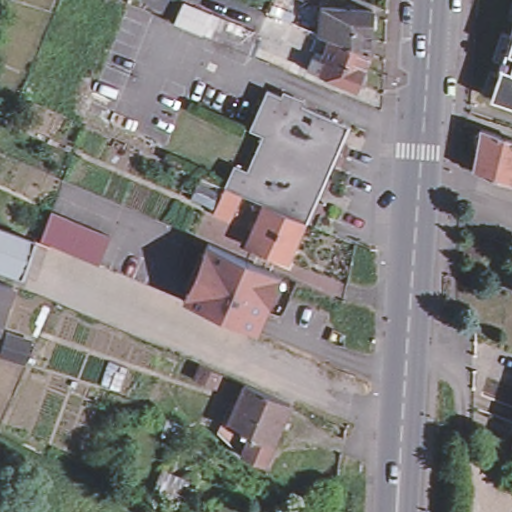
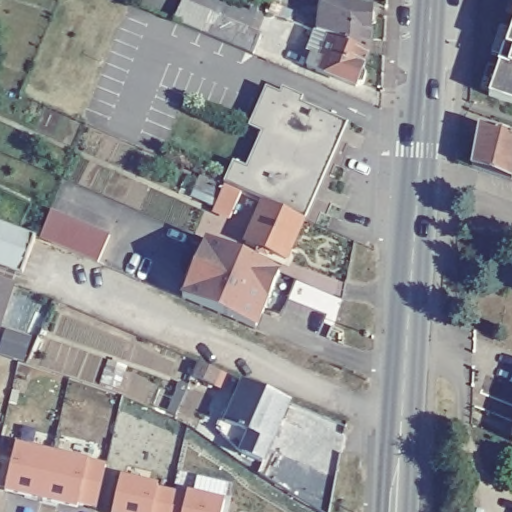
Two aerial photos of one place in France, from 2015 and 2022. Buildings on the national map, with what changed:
unchanged [(311,32),(313,24),(315,6),(367,9),(367,13),(370,16),(370,25),(366,28),(365,53),(364,54),(325,38),(322,37),(311,33),(311,32)]
unchanged [(253,55),(200,33),(186,27),(195,7),(209,12),(226,20),(225,23),(260,38),(253,55)]
unchanged [(495,90),(512,35),(512,97),(495,90)]
unchanged [(358,69),(360,75),(358,85),(351,85),(351,88),(301,67),(306,55),(316,59),(325,38),(364,54),(358,69)]
unchanged [(213,206),(225,180),(224,180),(223,180),(233,158),(246,164),(261,129),(248,123),(266,83),(341,117),(300,213),(263,197),(241,188),(230,213),(213,206)]
unchanged [(472,168),(476,147),(473,145),(474,132),(479,129),(480,127),(512,139),(512,181),(472,168)]
unchanged [(286,256),(245,238),(263,197),(300,213),(305,215),(286,256)]
unchanged [(45,211),(105,236),(93,264),(51,246),(35,240),(45,211)]
unchanged [(0,229),(30,240),(17,275),(0,269),(0,229)]
unchanged [(240,250),(254,256),(280,268),(255,325),(182,294),(190,277),(196,280),(206,256),(204,250),(201,249),(207,236),(240,250)]
unchanged [(0,308),(0,283),(7,285),(0,308)]
unchanged [(0,356),(0,337),(1,332),(25,340),(18,361),(0,356)]
unchanged [(192,377),(198,363),(220,372),(215,387),(192,377)]
unchanged [(290,407),(263,469),(241,459),(221,440),(244,387),(290,407)]
new [(106,461),(95,510),(5,488),(16,438),(106,461)]
new [(225,495),(222,512),(111,512),(121,471),(225,495)]

